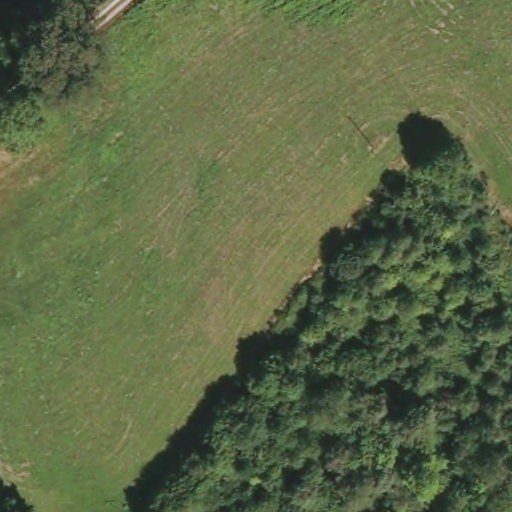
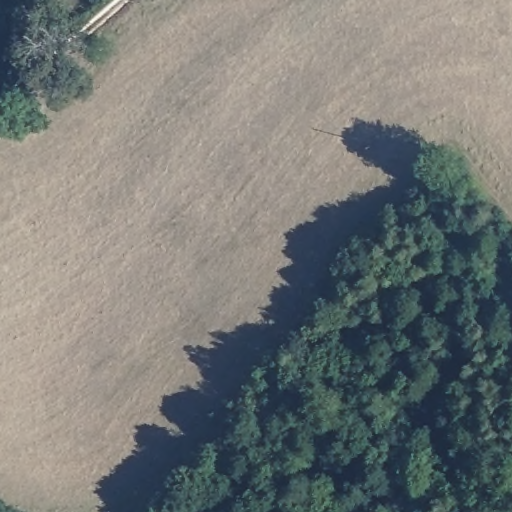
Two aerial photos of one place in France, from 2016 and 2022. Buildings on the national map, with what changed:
[]

